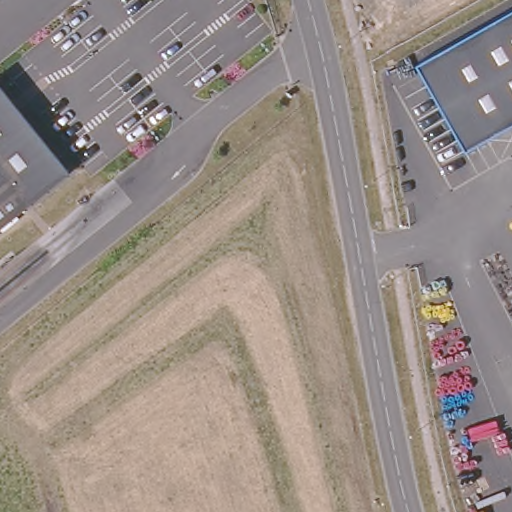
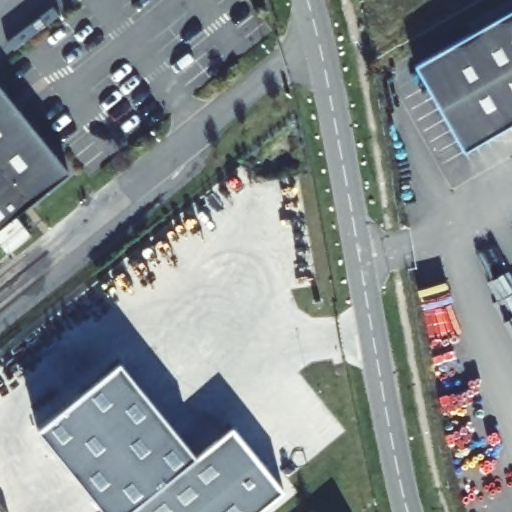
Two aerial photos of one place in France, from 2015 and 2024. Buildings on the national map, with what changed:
unchanged [(462,150),(413,62),(512,6),(512,121),(462,150)]
unchanged [(0,227),(0,87),(69,172),(0,227)]
new [(112,512),(43,425),(122,362),(196,458),(127,512),(112,512)]
new [(127,512),(196,458),(232,429),(281,493),(256,512),(127,512)]

